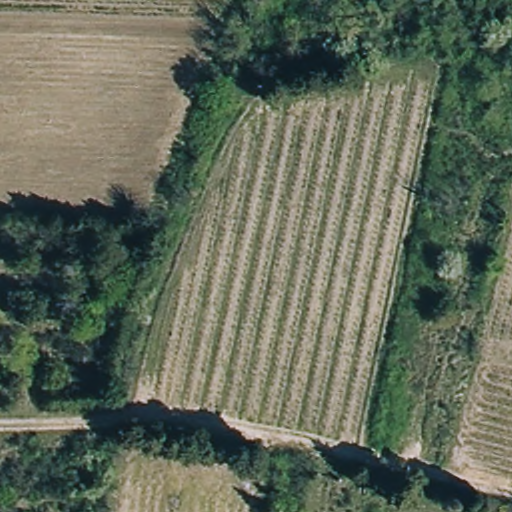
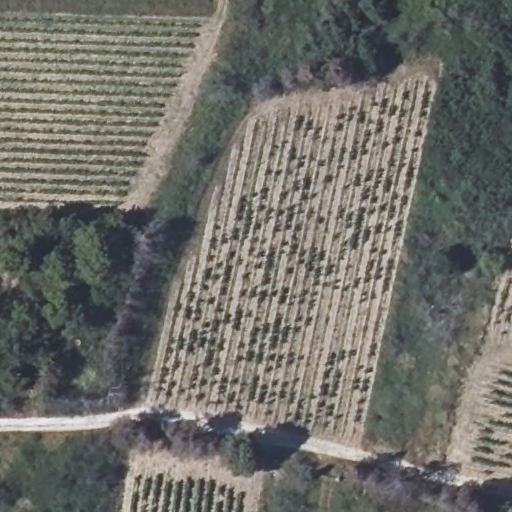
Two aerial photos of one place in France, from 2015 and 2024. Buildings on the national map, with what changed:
[]

